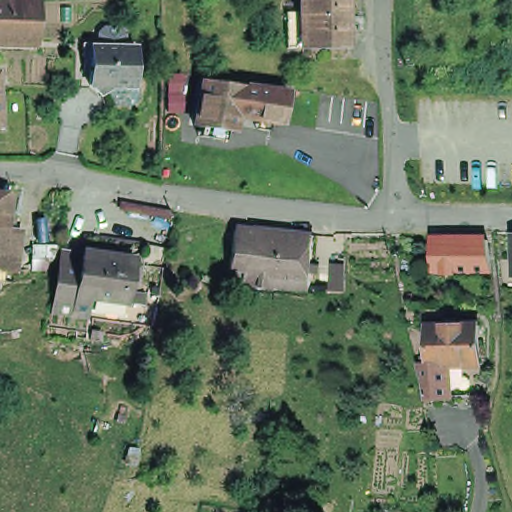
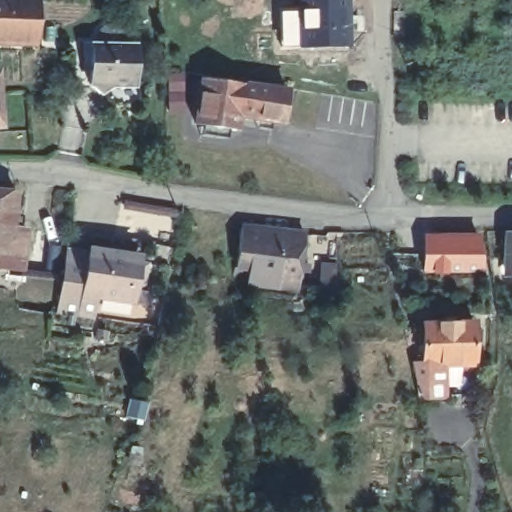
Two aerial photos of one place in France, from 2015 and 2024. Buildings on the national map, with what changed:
unchanged [(0,38),(0,0),(29,0),(28,39),(0,38)]
unchanged [(307,13),(307,0),(352,0),(352,49),(307,49),(292,49),(292,13),(307,13)]
unchanged [(137,77),(125,87),(115,86),(104,95),(92,86),(92,57),(93,46),(97,47),(137,47),(137,77)]
unchanged [(277,120),(233,112),(230,127),(192,121),(185,120),(192,76),(199,77),(237,83),(282,90),(277,120)]
unchanged [(2,122),(0,122),(0,84),(2,122)]
unchanged [(12,192),(10,216),(16,216),(15,227),(9,226),(9,227),(7,249),(5,268),(0,268),(0,190),(12,192)]
unchanged [(231,266),(233,257),(237,221),(260,223),(302,227),(295,285),(247,278),(247,259),(245,258),(244,267),(231,266)]
unchanged [(509,235),(512,235),(512,273),(509,273),(509,235)]
unchanged [(422,272),(421,237),(477,237),(480,271),(422,272)]
unchanged [(148,263),(151,244),(170,246),(167,266),(148,263)]
unchanged [(143,306),(129,303),(94,297),(90,316),(76,314),(87,252),(137,261),(145,262),(139,293),(145,295),(143,306)]
unchanged [(479,322),(479,361),(450,362),(419,364),(419,323),(479,322)]
unchanged [(450,362),(453,397),(420,401),(419,364),(450,362)]

